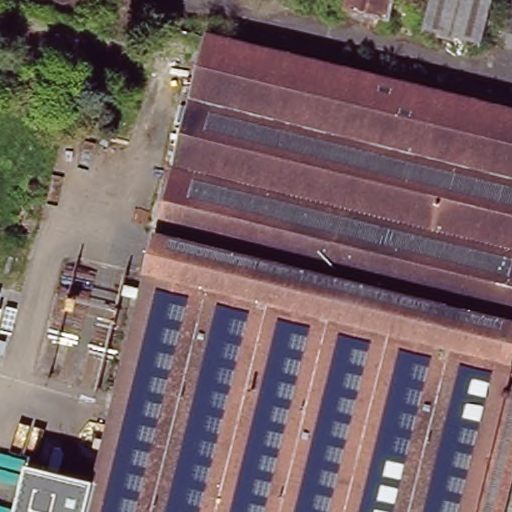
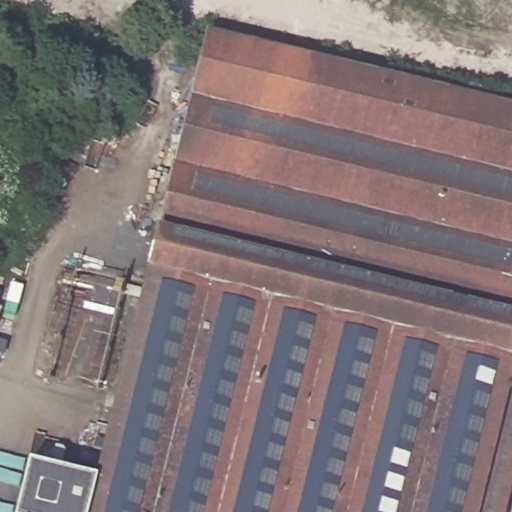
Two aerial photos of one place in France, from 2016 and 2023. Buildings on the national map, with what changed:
demolished [(344,0),(390,0),(386,18),(342,6),(344,0)]
demolished [(479,41),(422,26),(429,0),(490,0),(479,41)]
unchanged [(16,512),(29,464),(94,476),(207,30),(512,106),(512,512),(16,512)]
unchanged [(0,330),(0,303),(6,305),(0,330)]

